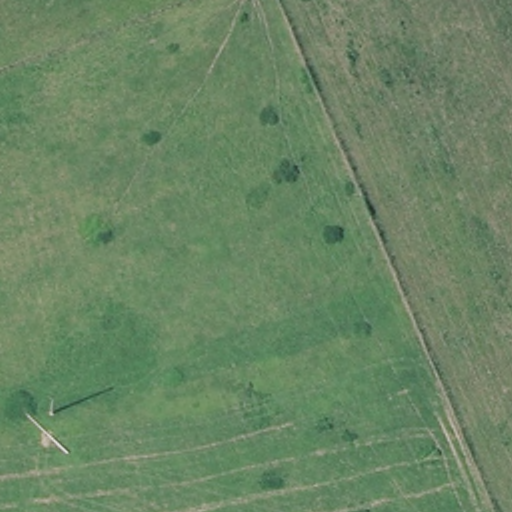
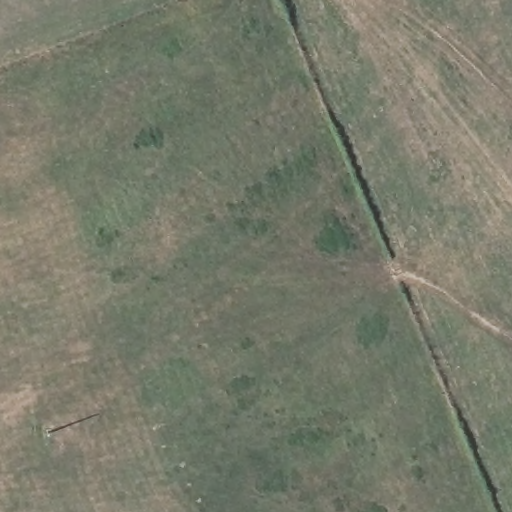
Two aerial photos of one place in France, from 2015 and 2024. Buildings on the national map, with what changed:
[]

